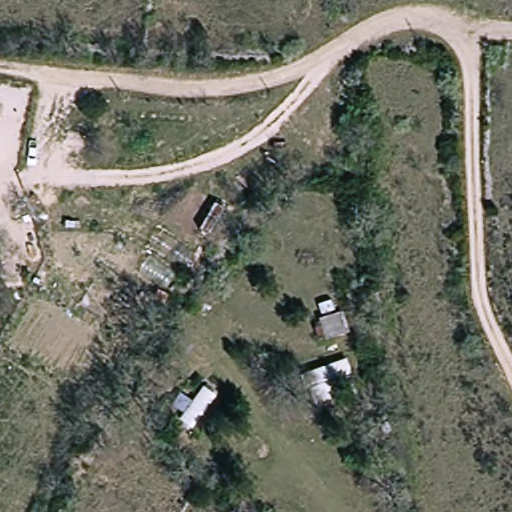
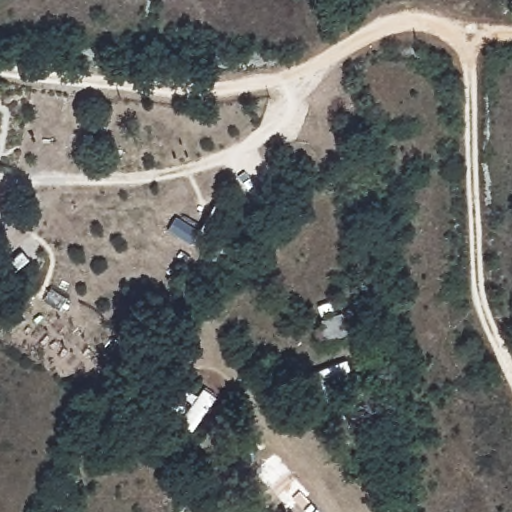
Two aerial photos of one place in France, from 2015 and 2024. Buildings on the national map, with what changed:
unchanged [(336,341),(312,345),(310,319),(333,317),(336,341)]
unchanged [(298,378),(342,362),(353,392),(309,412),(298,378)]
unchanged [(196,388),(212,397),(186,433),(172,422),(196,388)]

